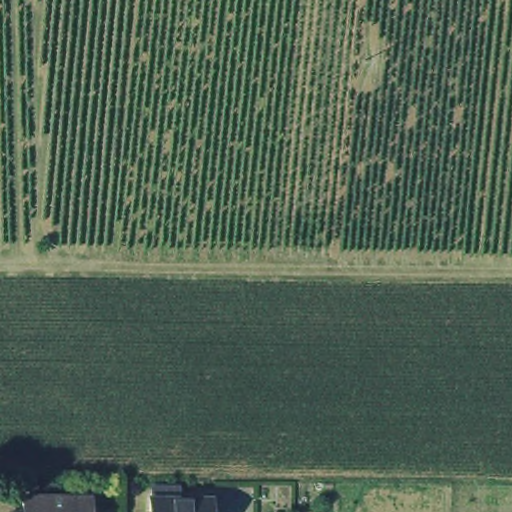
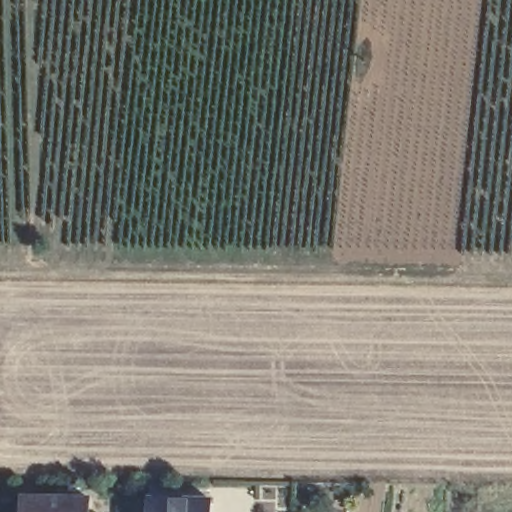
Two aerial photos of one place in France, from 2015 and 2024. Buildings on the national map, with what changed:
unchanged [(146,483),(174,483),(175,497),(205,498),(205,512),(146,512),(146,497),(146,483)]
unchanged [(13,512),(13,502),(82,502),(82,512),(13,512)]

